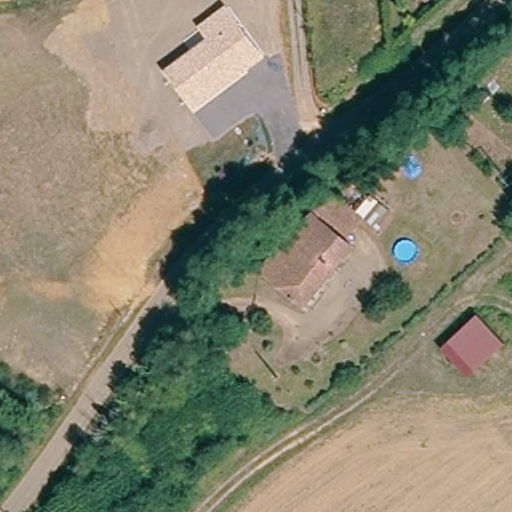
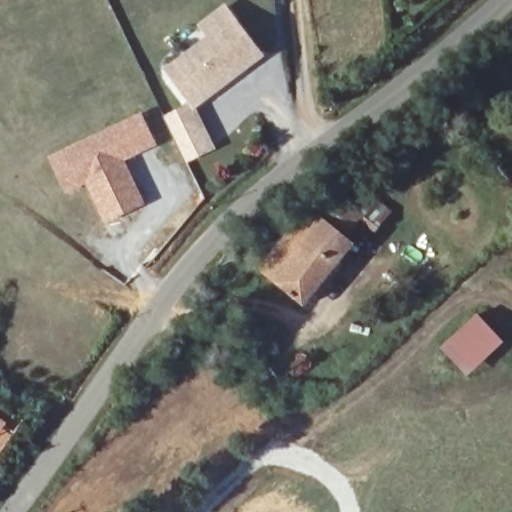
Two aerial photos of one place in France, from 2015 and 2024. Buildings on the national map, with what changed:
unchanged [(265,57),(196,110),(166,69),(207,39),(199,26),(226,5),(265,57)]
new [(216,150),(188,164),(164,116),(192,104),(196,110),(216,150)]
new [(158,146),(126,161),(146,204),(104,224),(86,184),(66,194),(49,156),(142,112),(158,146)]
unchanged [(366,243),(350,232),(335,250),(301,220),(338,189),(381,225),(377,231),(366,243)]
unchanged [(335,250),(344,258),(300,314),(254,280),(301,220),(335,250)]
unchanged [(477,315),(503,344),(465,377),(440,348),(477,315)]

